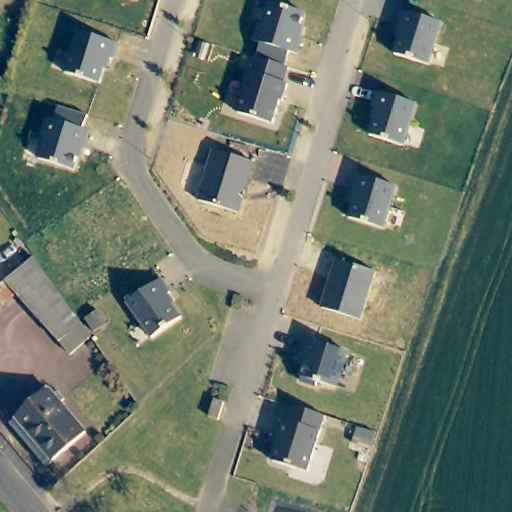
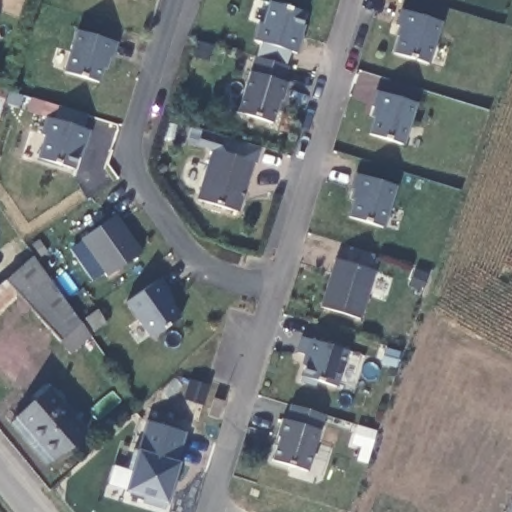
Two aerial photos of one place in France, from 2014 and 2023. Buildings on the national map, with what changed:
unchanged [(261,41),(254,39),(258,21),(262,23),(269,0),(305,11),(298,33),(302,34),(297,51),(290,50),(285,64),(271,60),(257,55),(261,41)]
unchanged [(404,25),(398,23),(403,8),(443,21),(430,62),(395,51),(404,25)]
unchanged [(117,43),(112,58),(107,56),(99,83),(65,72),(77,31),(117,43)]
unchanged [(255,55),(257,55),(271,60),(285,64),(288,65),(284,80),(288,81),(282,99),(280,98),(273,121),(238,111),(255,55)]
unchanged [(417,101),(403,142),(369,131),(377,105),(372,104),(377,88),(417,101)]
unchanged [(46,137),(42,136),(47,119),(55,121),(59,106),(74,111),(88,115),(84,129),(91,131),(86,149),(82,148),(75,170),(40,160),(46,137)]
unchanged [(240,214),(197,201),(212,150),(255,162),(240,214)]
unchanged [(356,188),(351,186),(356,171),(395,184),(382,225),(347,214),(356,188)]
new [(116,216),(142,253),(107,278),(81,241),(116,216)]
unchanged [(362,319),(321,307),(335,258),(376,271),(362,319)]
unchanged [(7,288),(36,263),(57,293),(31,316),(17,301),(0,314),(0,294),(7,288)]
unchanged [(162,277),(172,289),(167,293),(184,315),(155,336),(129,301),(162,277)]
unchanged [(77,322),(92,343),(70,361),(31,316),(57,293),(77,322)]
unchanged [(349,348),(338,384),(318,378),(317,382),(302,377),(310,353),(300,350),(305,335),(349,348)]
unchanged [(228,399),(222,416),(212,413),(218,395),(228,399)]
unchanged [(26,440),(13,425),(45,398),(56,412),(80,441),(59,459),(49,468),(40,457),(26,440)]
unchanged [(327,412),(310,469),(275,458),(282,434),(280,434),(285,416),(288,417),(293,402),(327,412)]
new [(176,496),(172,495),(169,507),(147,501),(149,495),(130,489),(136,468),(132,467),(137,447),(142,448),(150,418),(189,430),(180,459),(182,460),(177,477),(181,478),(176,496)]
unchanged [(374,428),(369,444),(353,440),(357,424),(374,428)]

